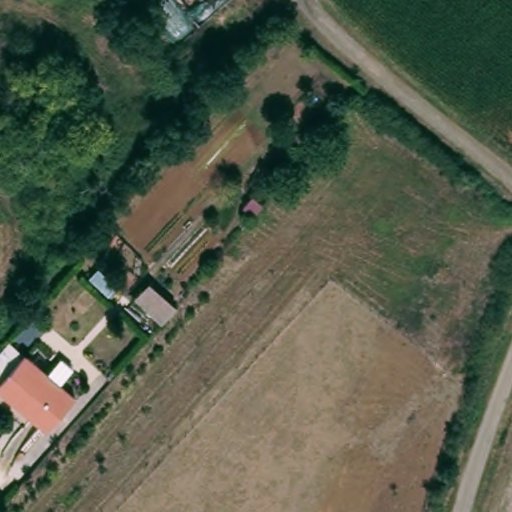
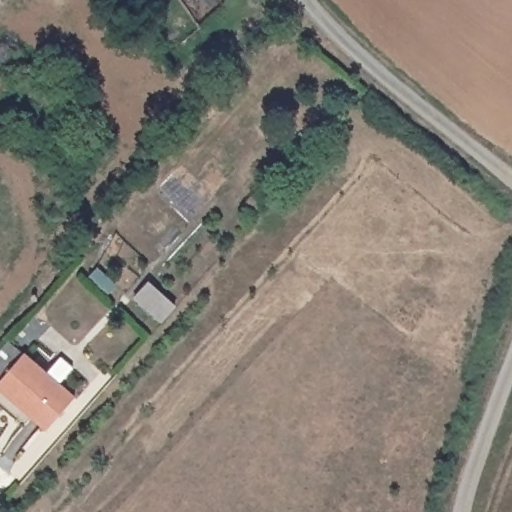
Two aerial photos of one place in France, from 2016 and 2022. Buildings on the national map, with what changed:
unchanged [(150,279),(179,303),(164,320),(136,295),(150,279)]
unchanged [(70,365),(55,381),(71,395),(43,426),(0,388),(0,350),(10,340),(21,350),(43,370),(58,355),(70,365)]

